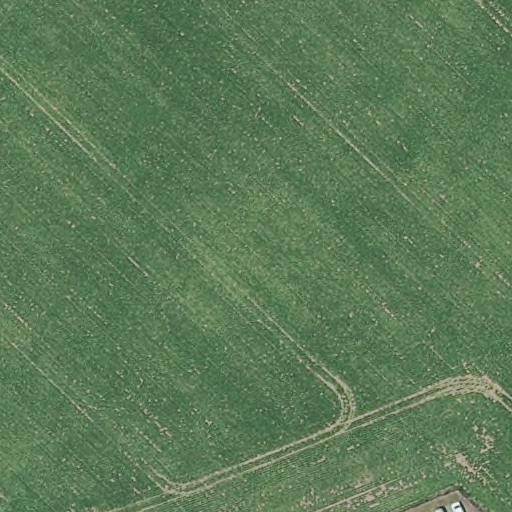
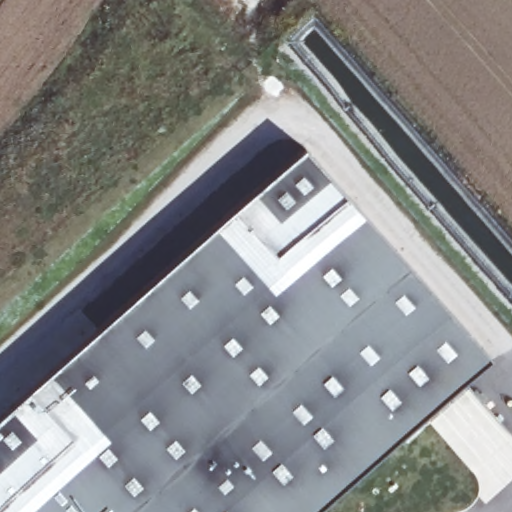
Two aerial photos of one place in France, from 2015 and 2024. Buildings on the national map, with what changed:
new [(0,421),(305,150),(490,360),(319,512),(0,512),(0,421)]

